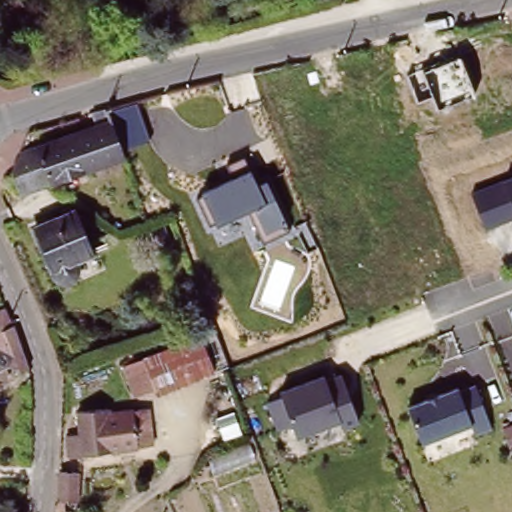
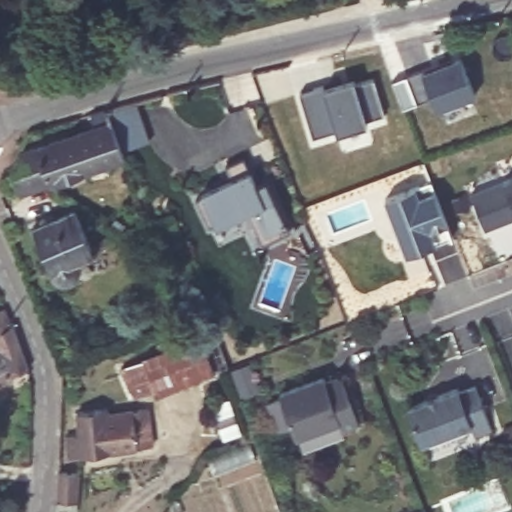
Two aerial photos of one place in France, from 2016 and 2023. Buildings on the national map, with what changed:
unchanged [(475,96),(435,110),(430,97),(415,102),(406,72),(421,67),(422,71),(460,55),(475,96)]
new [(364,119),(367,124),(366,125),(337,132),(335,127),(313,135),(300,93),(324,87),(353,79),(355,84),(373,79),(383,113),(364,119)]
unchanged [(138,102),(152,141),(124,149),(111,110),(138,102)]
unchanged [(30,134),(47,127),(52,138),(110,119),(124,159),(47,184),(37,153),(30,134)]
unchanged [(37,153),(48,189),(20,199),(12,179),(22,158),(37,153)]
unchanged [(225,165),(245,157),(258,185),(268,181),(292,232),(261,245),(254,227),(260,225),(253,210),(216,226),(201,192),(232,180),(225,165)]
unchanged [(512,219),(483,230),(471,191),(512,176),(512,219)]
new [(422,249),(407,255),(384,200),(429,180),(447,229),(450,236),(422,249)]
unchanged [(90,255),(72,262),(73,266),(74,270),(73,275),(71,278),(68,280),(65,282),(62,283),(56,281),(53,278),(50,274),(38,244),(32,226),(38,224),(72,210),(90,255)]
unchanged [(11,327),(15,326),(29,370),(15,376),(17,380),(0,387),(0,313),(5,310),(11,327)]
unchanged [(212,375),(155,396),(155,395),(135,402),(124,373),(200,343),(212,375)]
unchanged [(360,422),(342,428),(339,420),(295,437),(290,425),(275,430),(265,401),(280,395),(278,390),(322,374),(325,380),(340,373),(360,422)]
unchanged [(490,427),(477,433),(470,421),(420,441),(406,406),(455,386),(458,391),(474,384),(490,427)]
unchanged [(80,434),(79,412),(108,409),(108,415),(148,410),(150,444),(137,445),(137,447),(69,457),(68,435),(80,434)]
unchanged [(80,475),(77,512),(55,512),(58,473),(80,475)]

